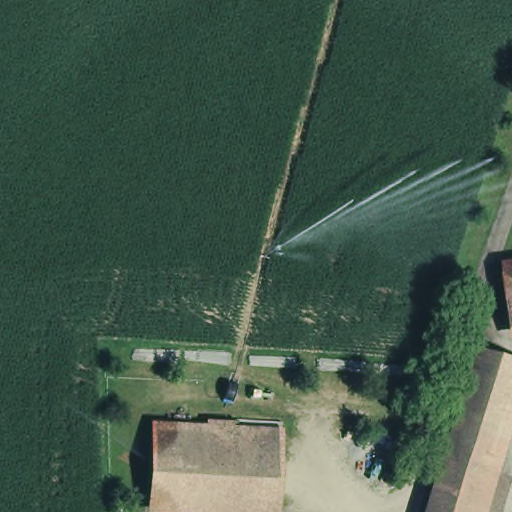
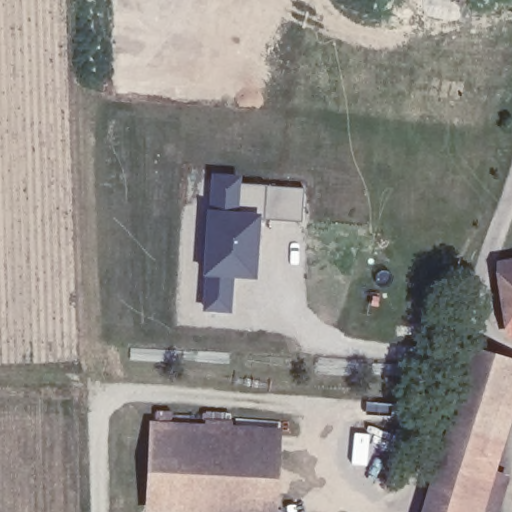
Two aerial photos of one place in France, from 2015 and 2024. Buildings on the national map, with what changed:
new [(242,172),(239,185),(304,189),(302,222),(260,219),(257,283),(236,279),(235,314),(200,311),(209,168),(242,172)]
unchanged [(501,266),(512,265),(512,317),(510,317),(501,266)]
unchanged [(487,343),(512,351),(512,398),(490,471),(477,512),(435,512),(478,372),(481,362),(487,343)]
unchanged [(151,421),(279,427),(274,512),(144,512),(151,421)]
unchanged [(512,479),(512,500),(508,512),(477,512),(490,471),(512,479)]

